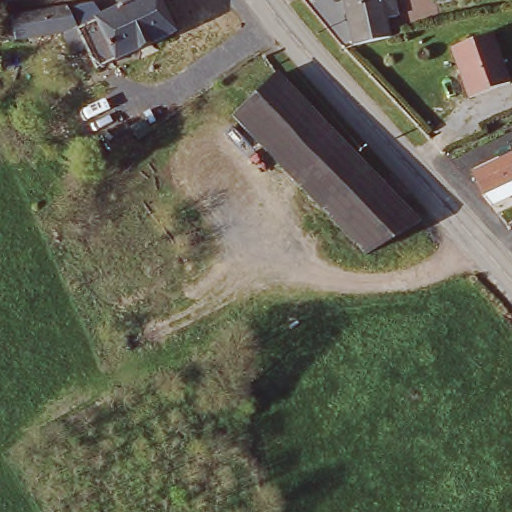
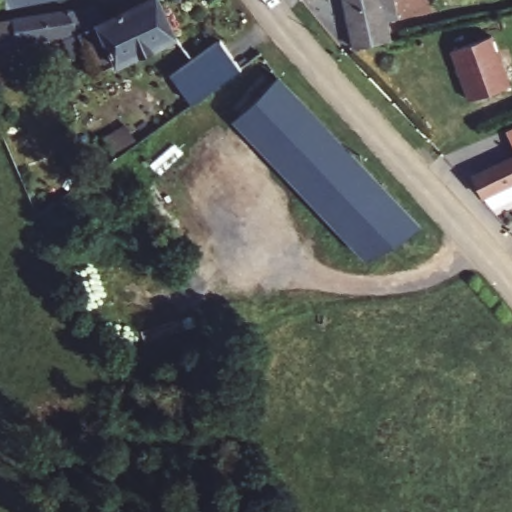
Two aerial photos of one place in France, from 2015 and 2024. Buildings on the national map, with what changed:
unchanged [(156,0),(159,0),(177,38),(99,76),(85,51),(72,58),(62,40),(19,47),(2,48),(0,37),(0,25),(15,23),(70,13),(81,34),(156,0)]
unchanged [(6,4),(5,0),(28,0),(6,4)]
unchanged [(392,24),(395,40),(360,48),(349,0),(386,0),(392,24)]
new [(219,39),(240,68),(191,103),(170,75),(219,39)]
unchanged [(510,93),(475,109),(454,58),(490,43),(510,93)]
unchanged [(237,127),(281,86),(420,234),(369,265),(237,127)]
unchanged [(512,158),(512,182),(510,182),(512,185),(512,196),(492,206),(482,196),(485,195),(475,175),(512,158)]

